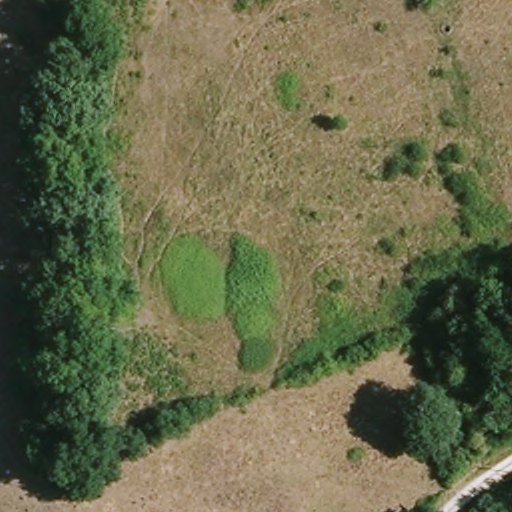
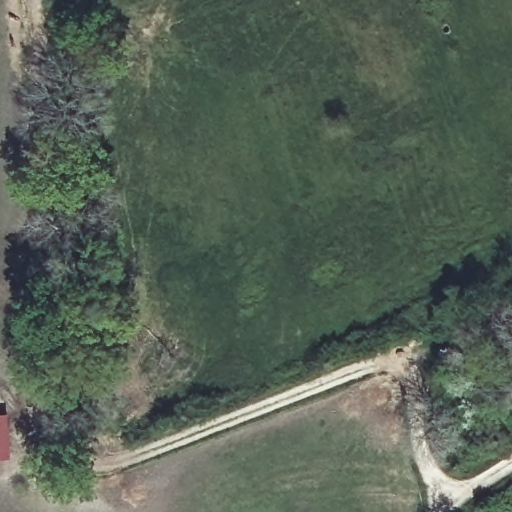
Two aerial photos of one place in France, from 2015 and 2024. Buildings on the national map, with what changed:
new [(9,412),(13,457),(0,458),(0,413),(9,412)]

